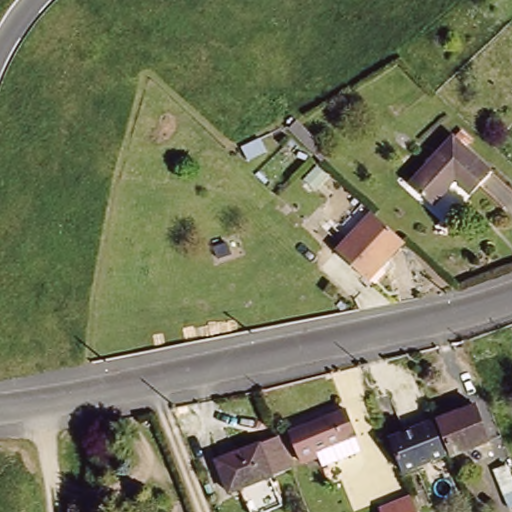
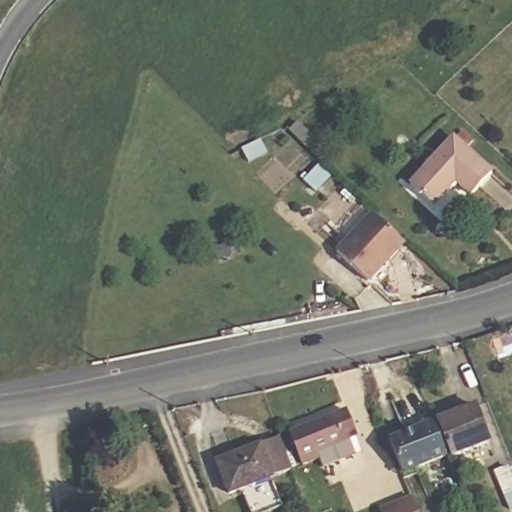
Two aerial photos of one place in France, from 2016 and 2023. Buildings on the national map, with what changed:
unchanged [(296,121),(329,151),(321,160),(288,129),(296,121)]
unchanged [(457,132),(494,167),(473,191),(458,177),(438,200),(414,179),(457,132)]
unchanged [(409,241),(373,280),(341,251),(376,211),(409,241)]
unchanged [(489,441),(454,454),(439,418),(474,404),(489,441)]
unchanged [(284,436),(341,415),(348,412),(361,452),(319,468),(316,460),(314,461),(297,468),(284,436)]
unchanged [(398,464),(388,438),(429,422),(441,454),(400,469),(398,464)]
unchanged [(274,476),(230,493),(217,460),(261,443),(274,476)]
unchanged [(504,493),(495,470),(508,465),(512,476),(512,501),(508,491),(504,493)]
unchanged [(398,512),(411,507),(413,512),(398,512)]

